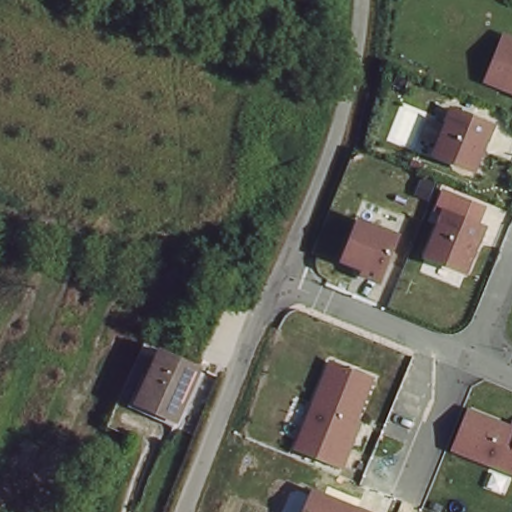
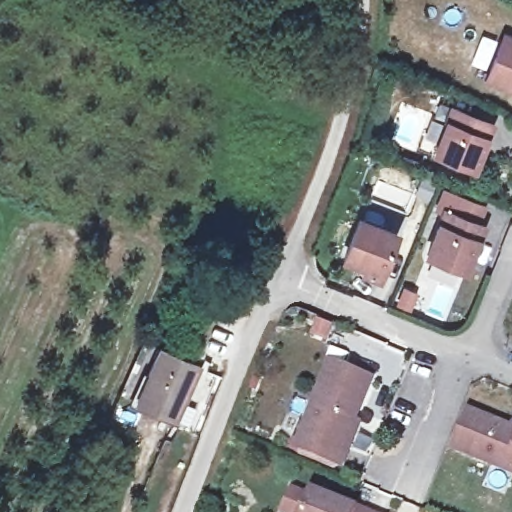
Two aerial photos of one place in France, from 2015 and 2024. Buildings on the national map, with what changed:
unchanged [(483,78),(500,35),(512,39),(512,89),(483,78)]
unchanged [(495,129),(465,165),(433,138),(463,103),(495,129)]
unchanged [(480,227),(462,270),(424,255),(441,211),(480,227)]
unchanged [(392,236),(374,280),(359,274),(361,268),(340,259),(355,221),(392,236)]
unchanged [(222,376),(219,383),(200,376),(180,421),(157,411),(150,408),(143,405),(166,352),(172,355),(179,358),(202,368),(222,376)]
unchanged [(361,417),(366,419),(347,470),(294,451),(328,361),(376,379),(361,417)]
unchanged [(469,408),(512,425),(512,476),(451,452),(469,408)]
unchanged [(371,512),(301,512),(311,487),(371,512)]

